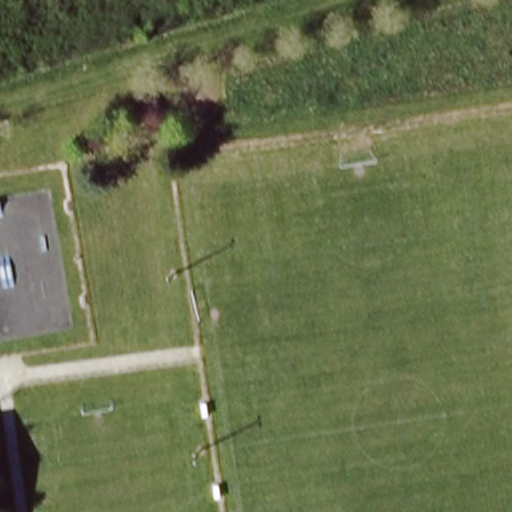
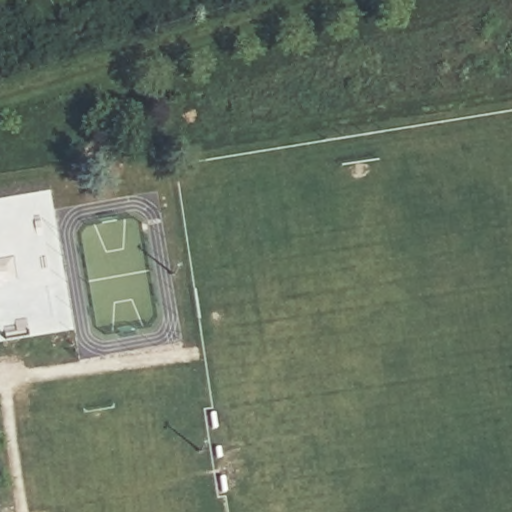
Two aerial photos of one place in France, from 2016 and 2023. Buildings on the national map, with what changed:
unchanged [(1,512),(0,512),(0,504),(1,512)]

